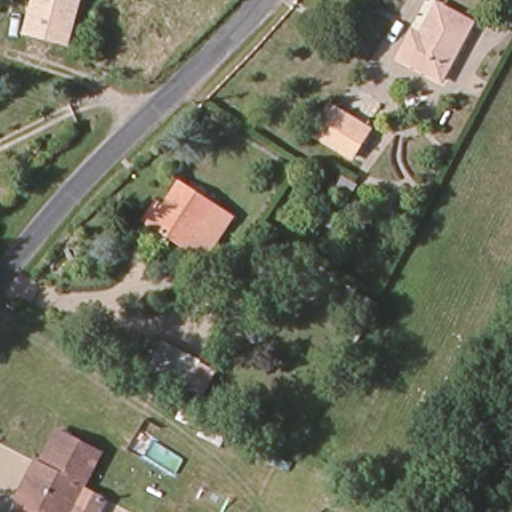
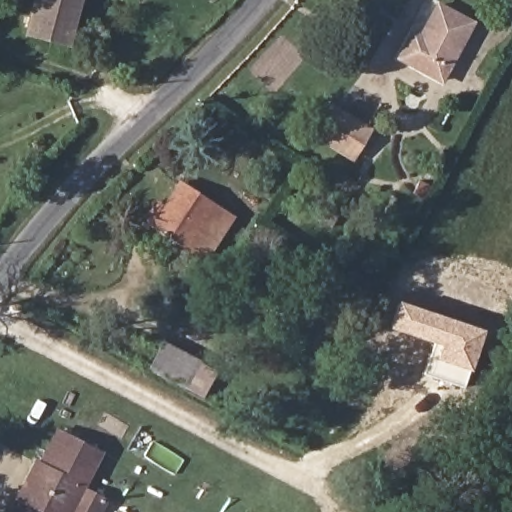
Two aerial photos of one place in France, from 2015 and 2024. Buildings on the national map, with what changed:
unchanged [(0,15),(0,8),(2,0),(37,0),(31,22),(0,15)]
unchanged [(70,45),(29,36),(31,22),(37,0),(82,0),(70,45)]
unchanged [(472,24),(442,81),(400,59),(415,32),(422,37),(440,6),(472,24)]
unchanged [(334,107),(369,131),(350,159),(315,134),(334,107)]
unchanged [(216,207),(185,252),(154,231),(148,227),(160,207),(167,211),(184,186),(216,207)]
new [(469,371),(462,387),(420,374),(431,342),(386,328),(396,300),(482,330),(469,371)]
unchanged [(207,392),(190,382),(160,367),(154,363),(167,338),(176,342),(203,357),(222,367),(207,392)]
unchanged [(101,494),(92,512),(16,512),(11,510),(19,496),(15,493),(33,458),(36,461),(55,427),(60,430),(99,451),(81,483),(101,494)]

